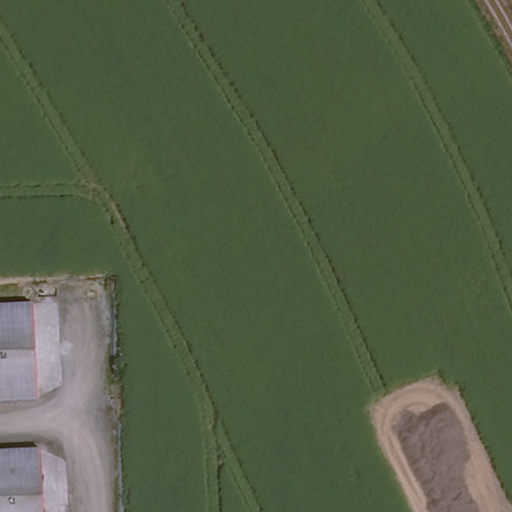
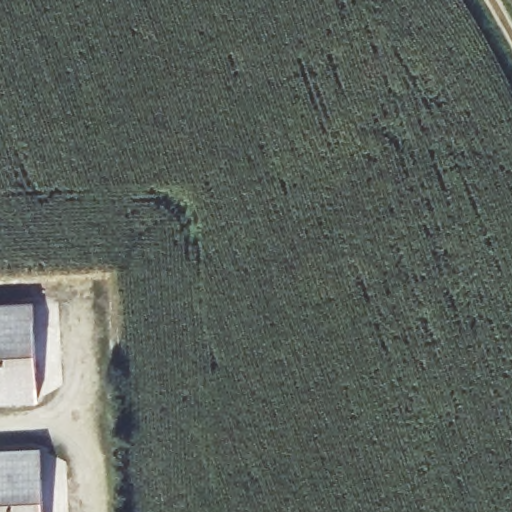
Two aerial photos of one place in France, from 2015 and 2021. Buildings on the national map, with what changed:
unchanged [(38,402),(0,404),(0,308),(31,307),(38,402)]
unchanged [(0,455),(39,453),(42,512),(0,512),(0,455)]

